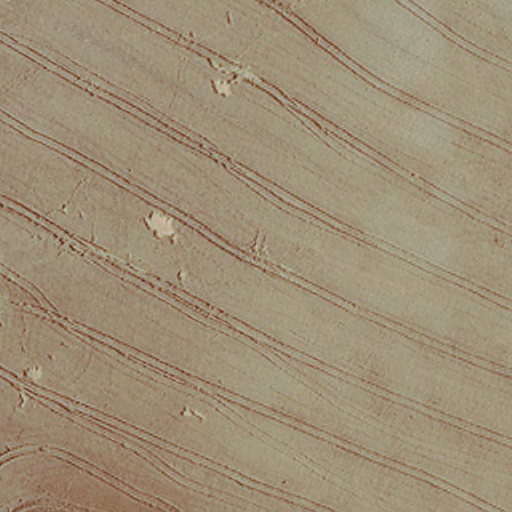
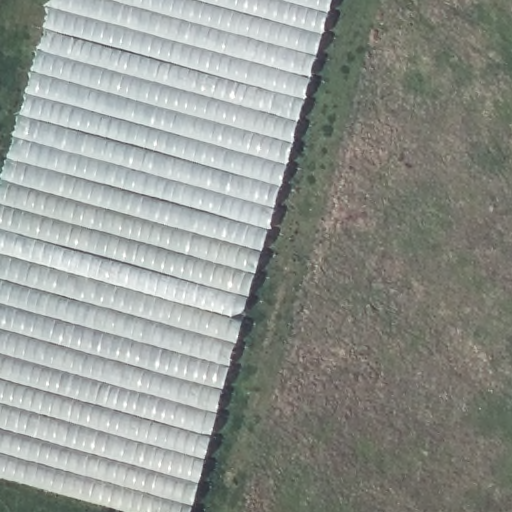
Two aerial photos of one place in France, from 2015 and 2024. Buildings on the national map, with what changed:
new [(10,146),(48,0),(332,0),(285,174),(245,305),(190,512),(125,512),(0,478),(0,179),(10,146)]

